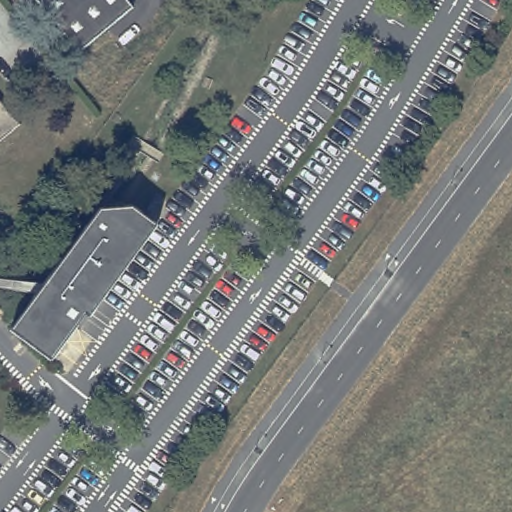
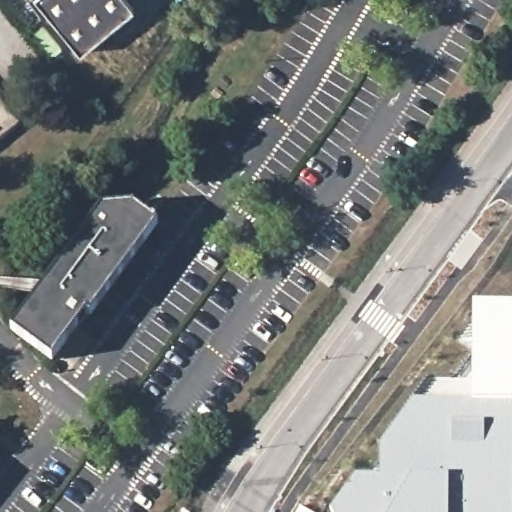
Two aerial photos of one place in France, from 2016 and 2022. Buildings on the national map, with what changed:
unchanged [(135,11),(80,56),(35,0),(126,0),(135,11)]
unchanged [(0,139),(0,94),(21,120),(0,139)]
unchanged [(7,330),(100,207),(126,201),(155,222),(51,362),(17,337),(7,330)]
new [(378,473),(377,445),(409,401),(426,376),(473,375),(473,308),(512,309),(512,512),(329,512),(327,507),(353,473),(378,473)]

